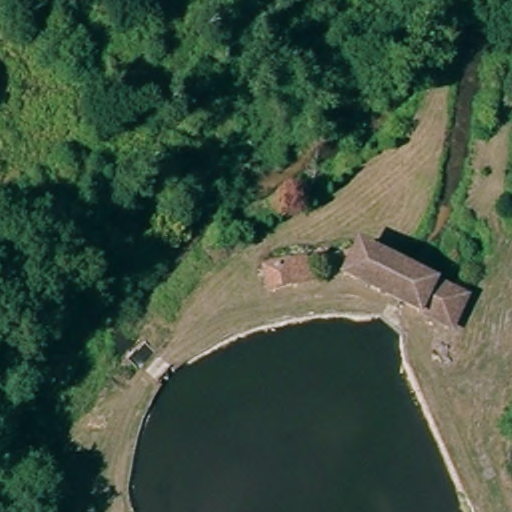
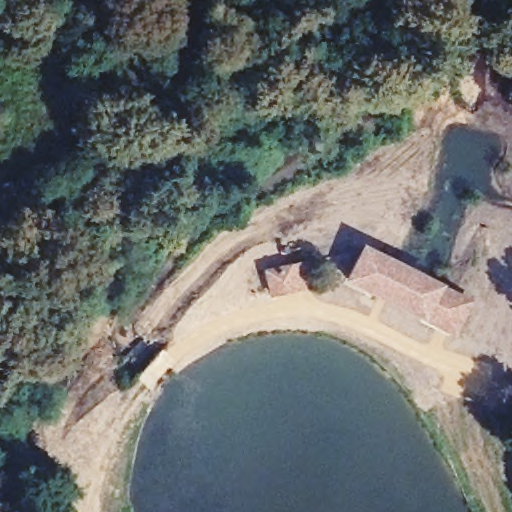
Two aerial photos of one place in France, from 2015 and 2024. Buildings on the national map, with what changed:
unchanged [(428,353),(423,311),(342,275),(356,246),(396,263),(425,276),(458,292),(446,323),(464,325),(467,351),(428,353)]
unchanged [(271,299),(262,270),(283,264),(286,274),(304,270),(309,288),(271,299)]

